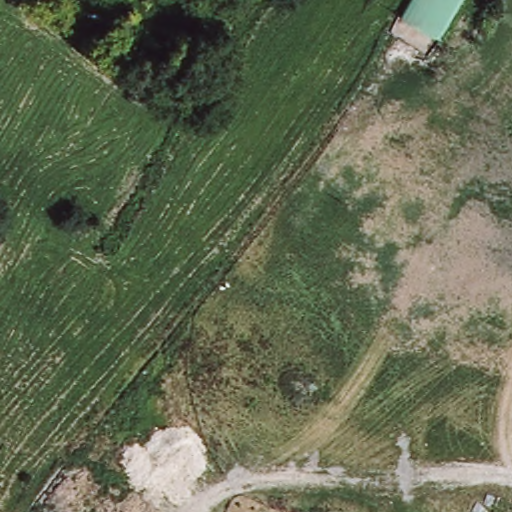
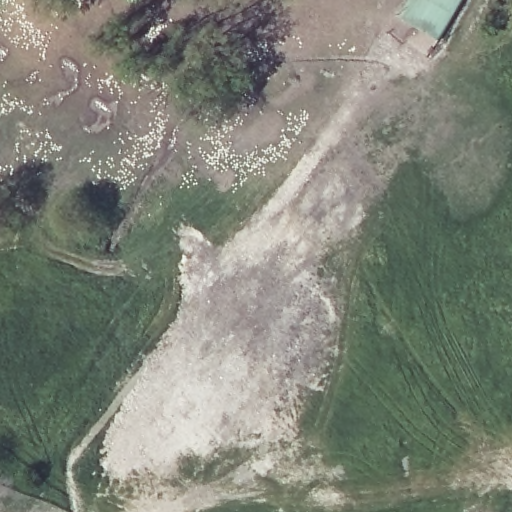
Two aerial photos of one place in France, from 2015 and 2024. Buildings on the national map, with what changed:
unchanged [(459,0),(434,40),(400,19),(412,0),(459,0)]

